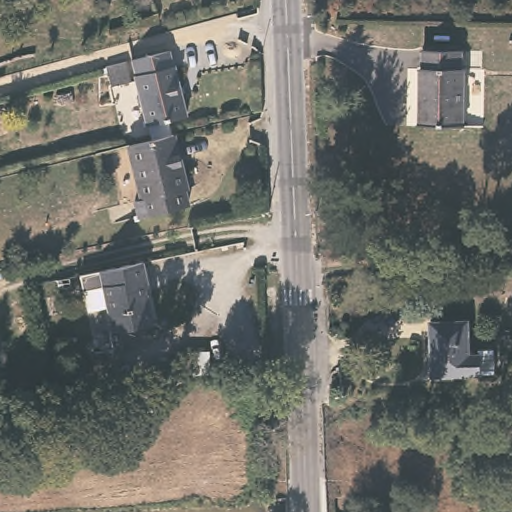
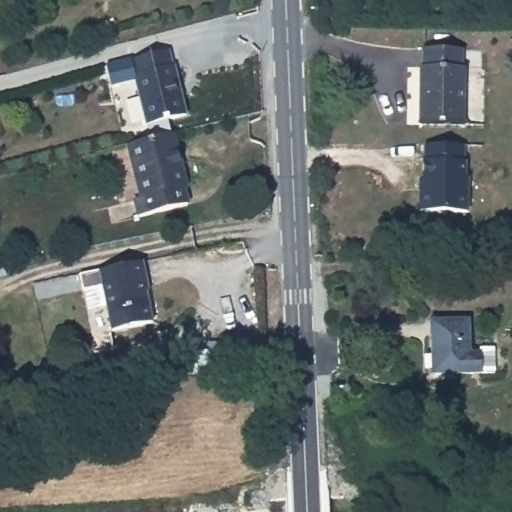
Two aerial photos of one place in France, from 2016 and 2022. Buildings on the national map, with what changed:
unchanged [(185,111),(148,120),(135,67),(136,64),(134,54),(168,44),(185,111)]
unchanged [(465,45),(465,62),(466,62),(466,120),(423,119),(423,64),(427,64),(426,44),(465,45)]
unchanged [(192,182),(187,184),(191,200),(143,212),(138,195),(144,192),(131,140),(177,128),(192,182)]
new [(417,180),(422,179),(421,161),(424,161),(423,145),(464,145),(464,160),(466,161),(466,177),(469,177),(469,212),(417,211),(417,180)]
unchanged [(144,275),(142,280),(151,323),(112,332),(98,270),(142,260),(144,275)]
unchanged [(474,348),(496,347),(498,367),(437,369),(434,315),(472,312),(474,348)]
unchanged [(209,371),(203,371),(191,371),(189,352),(208,352),(209,371)]

